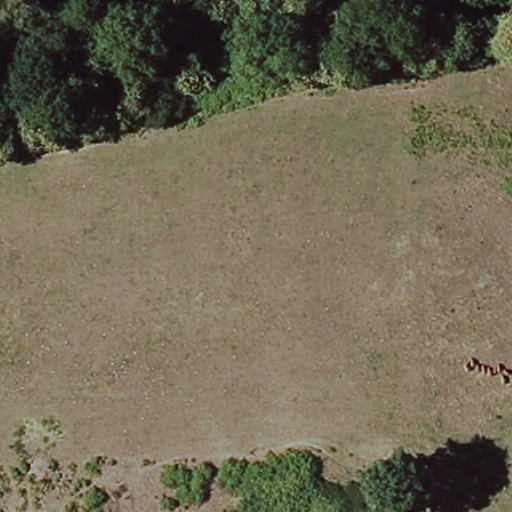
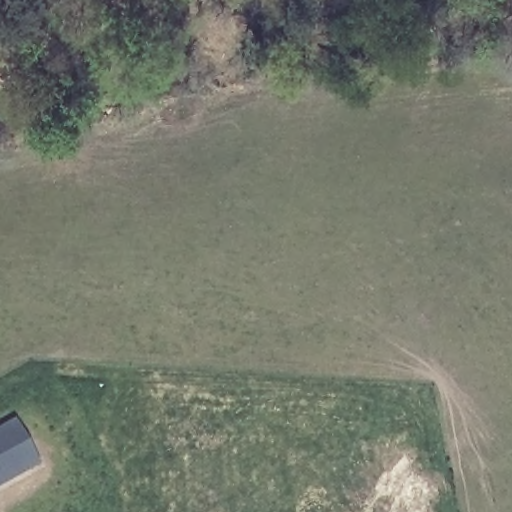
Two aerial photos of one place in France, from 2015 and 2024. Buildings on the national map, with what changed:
new [(37,469),(0,489),(0,429),(12,423),(37,469)]

